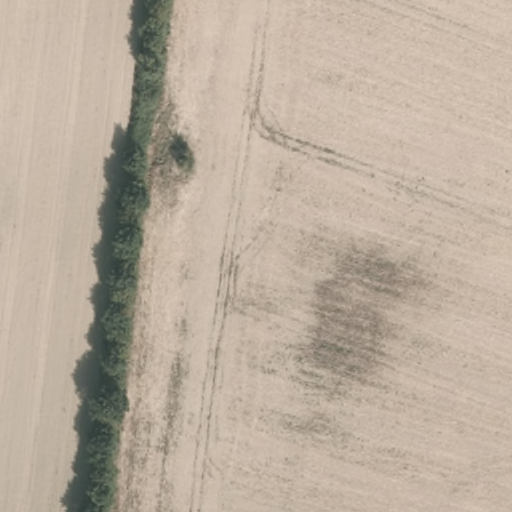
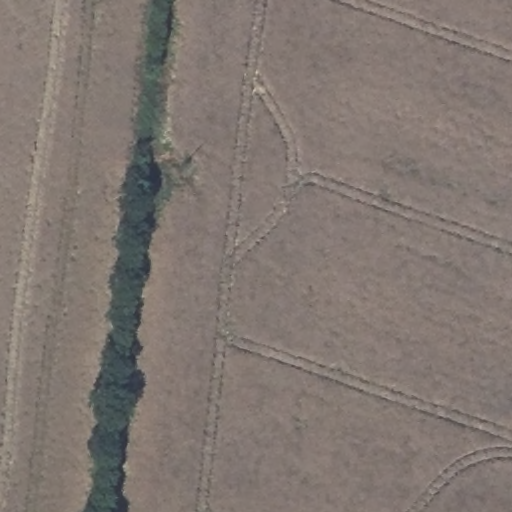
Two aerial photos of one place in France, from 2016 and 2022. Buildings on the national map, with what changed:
[]

